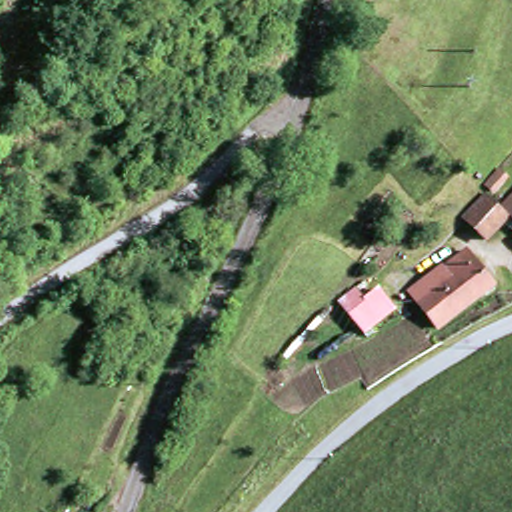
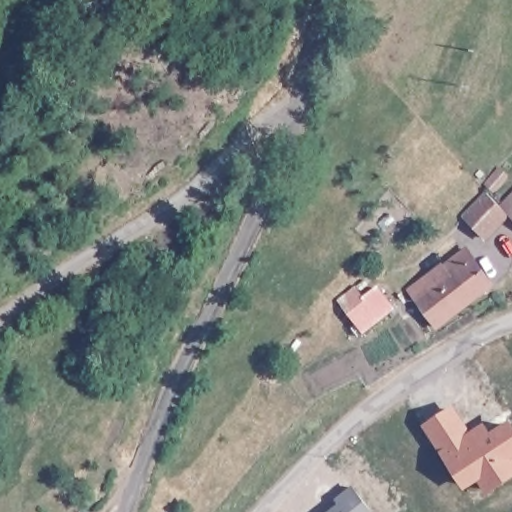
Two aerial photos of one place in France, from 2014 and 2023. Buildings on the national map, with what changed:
unchanged [(490,190),(497,200),(512,189),(512,214),(508,210),(505,210),(480,229),(465,210),(490,190)]
unchanged [(415,298),(419,296),(448,272),(441,263),(463,245),(485,269),(493,280),(437,325),(415,298)]
unchanged [(344,306),(340,301),(357,288),(365,298),(380,287),(395,307),(396,308),(365,332),(344,306)]
new [(483,430),(490,439),(510,426),(512,430),(512,456),(510,457),(512,459),(512,476),(490,491),(480,477),(467,486),(427,427),(452,411),(470,438),(483,430)]

